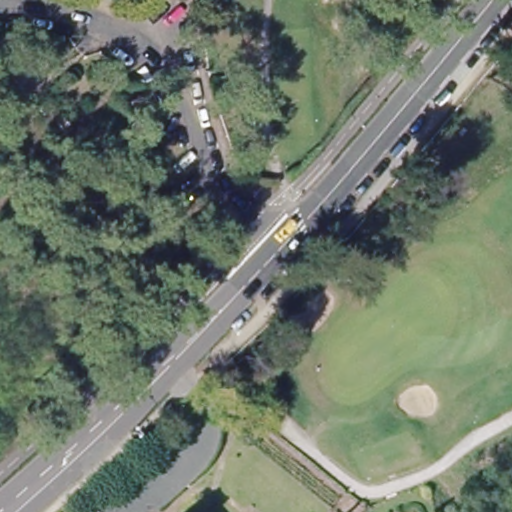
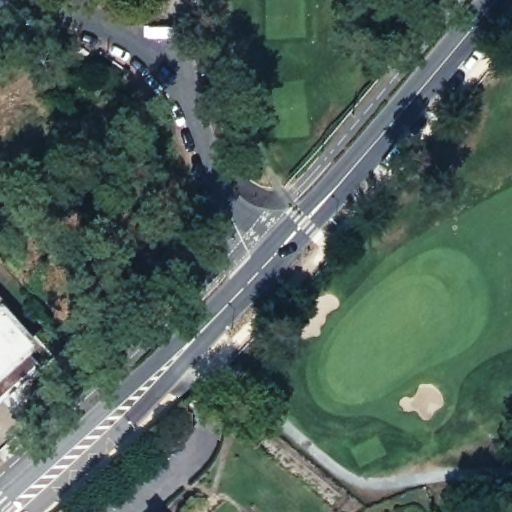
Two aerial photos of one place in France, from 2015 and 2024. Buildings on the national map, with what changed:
new [(12,306),(8,308),(41,341),(31,350),(43,366),(0,403),(0,293),(12,306)]
unchanged [(189,512),(168,512),(179,501),(189,512)]

